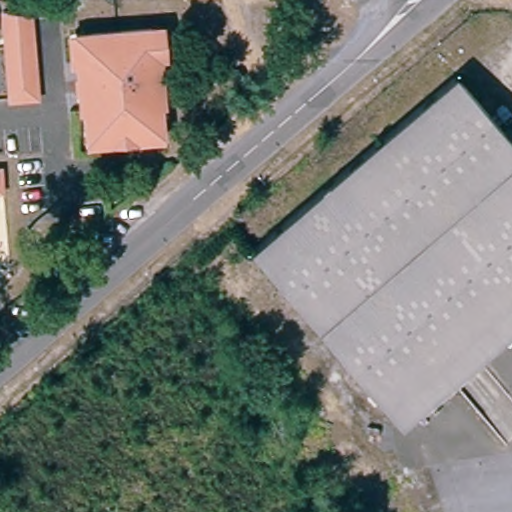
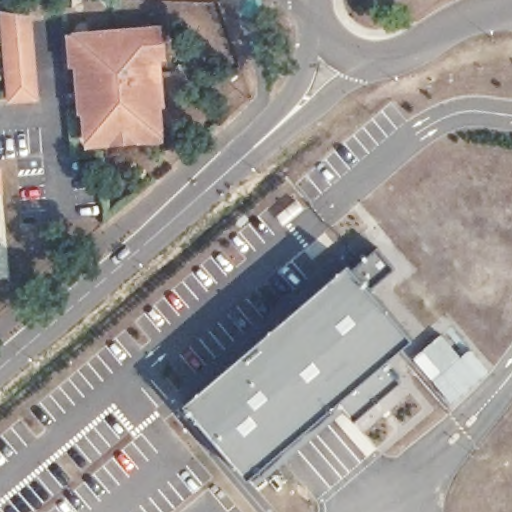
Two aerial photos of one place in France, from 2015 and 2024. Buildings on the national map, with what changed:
unchanged [(3,9),(31,12),(37,96),(10,98),(3,9)]
unchanged [(73,61),(77,61),(75,34),(146,28),(149,55),(152,55),(156,103),(152,103),(155,130),(128,132),(127,125),(107,126),(107,134),(82,136),(80,109),(77,109),(75,91),(75,78),(73,61)]
demolished [(512,326),(393,428),(246,254),(448,81),(512,158),(512,326)]
new [(395,268),(370,287),(413,338),(385,362),(402,382),(355,421),(341,399),(248,477),(183,402),(350,262),(353,266),(376,249),(395,268)]
new [(441,332),(460,355),(430,381),(411,358),(441,332)]
new [(460,355),(469,348),(488,371),(451,404),(430,381),(460,355)]

